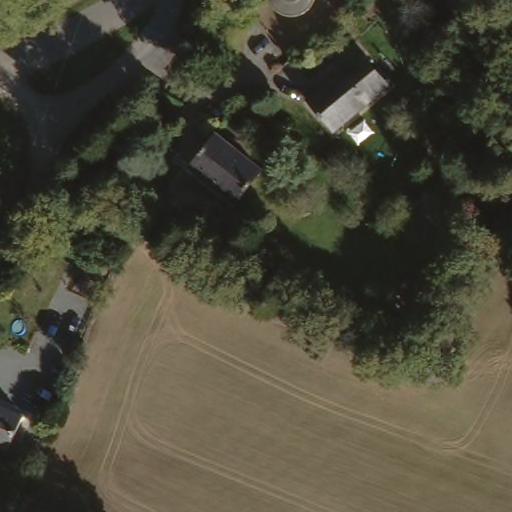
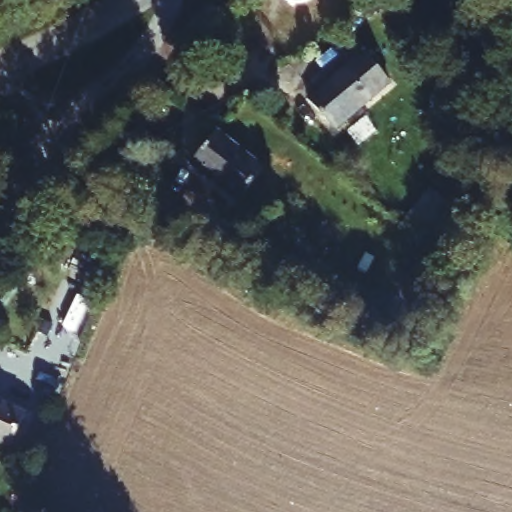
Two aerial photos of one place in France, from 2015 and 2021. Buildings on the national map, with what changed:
unchanged [(232,10),(221,0),(240,0),(232,10)]
unchanged [(339,128),(310,99),(354,56),(382,84),(339,128)]
unchanged [(236,197),(187,163),(211,131),(259,165),(236,197)]
unchanged [(422,241),(401,226),(426,191),(447,207),(422,241)]
unchanged [(4,446),(0,445),(0,406),(13,412),(26,418),(13,450),(4,446)]

